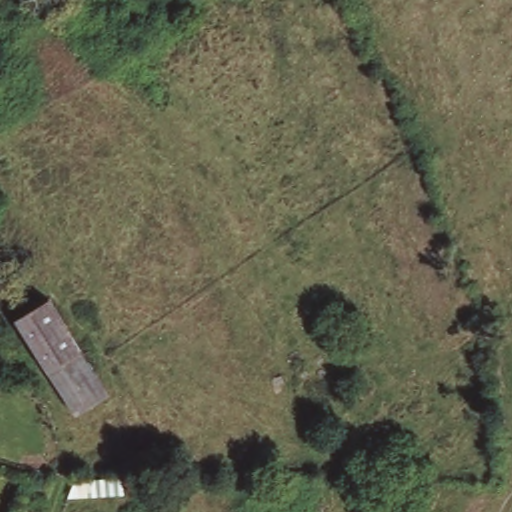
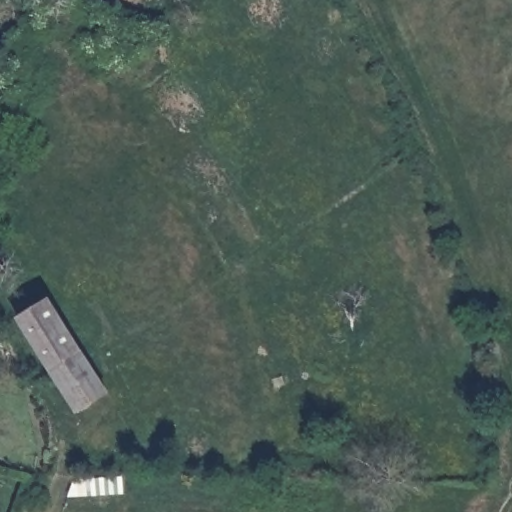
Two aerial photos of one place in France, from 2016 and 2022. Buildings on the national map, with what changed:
unchanged [(52,302),(81,350),(51,368),(21,321),(52,302)]
unchanged [(81,350),(107,393),(78,411),(51,368),(81,350)]

